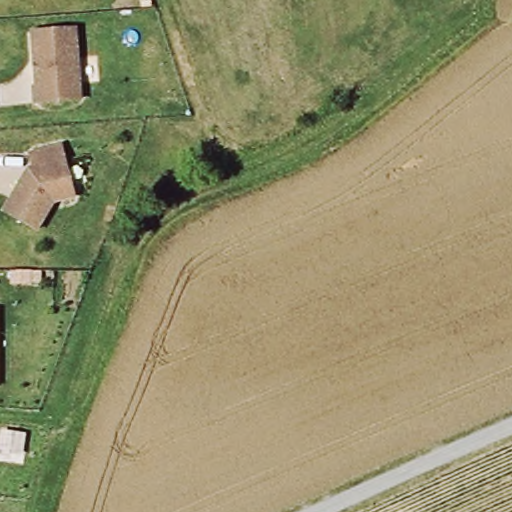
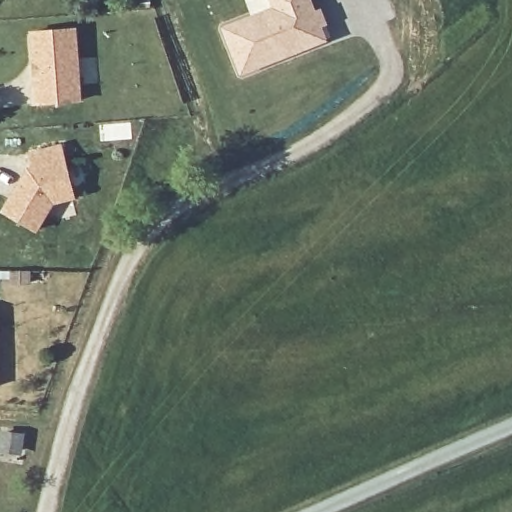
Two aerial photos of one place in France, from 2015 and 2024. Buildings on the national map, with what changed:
new [(225,25),(277,7),(274,0),(311,0),(320,27),(325,42),(294,52),(240,70),(225,25)]
new [(330,10),(335,23),(320,27),(316,14),(330,10)]
unchanged [(42,108),(37,37),(80,35),(84,105),(42,108)]
unchanged [(57,197),(40,224),(8,205),(22,180),(27,180),(34,171),(32,165),(37,162),(33,149),(65,140),(77,191),(57,197)]

